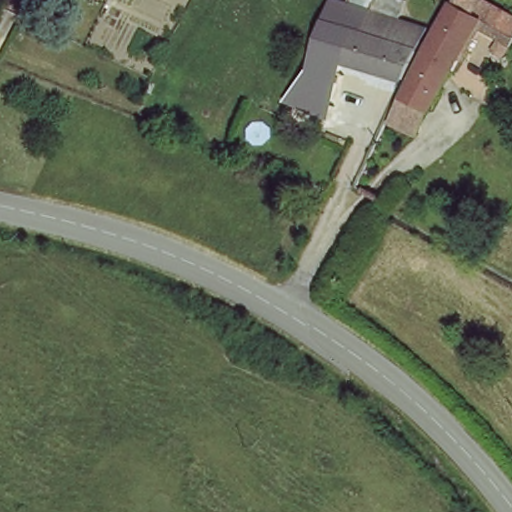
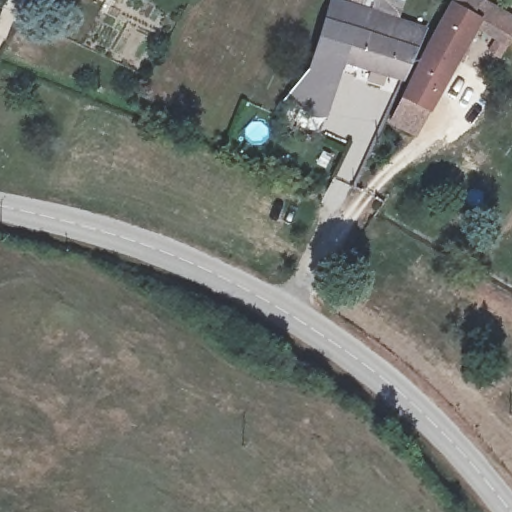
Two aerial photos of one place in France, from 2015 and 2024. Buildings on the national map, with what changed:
unchanged [(409,81),(345,66),(325,119),(288,108),(293,97),(298,92),(309,88),(337,9),(370,24),(383,0),(405,0),(412,3),(405,21),(432,31),(409,81)]
unchanged [(394,128),(459,0),(477,0),(482,3),(475,20),(480,23),(502,37),(512,42),(502,61),(492,55),(497,45),(475,32),(420,139),(394,128)]

